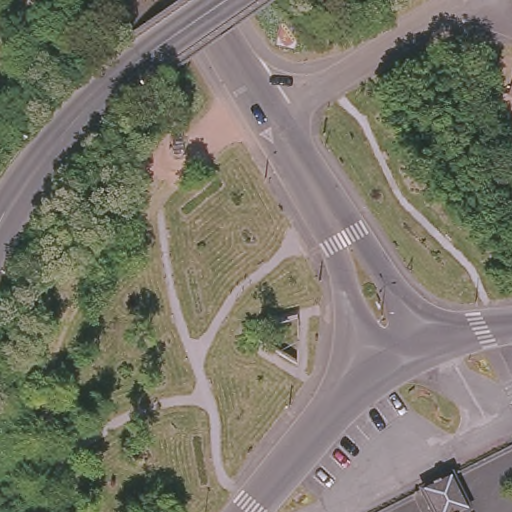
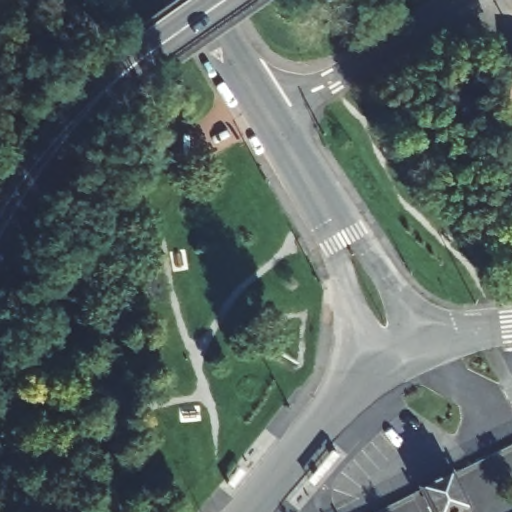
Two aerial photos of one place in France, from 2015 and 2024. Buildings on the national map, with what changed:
unchanged [(370,20),(376,29),(352,44),(349,40),(370,20)]
unchanged [(512,83),(512,97),(506,95),(512,83)]
unchanged [(417,490),(449,475),(467,512),(427,512),(417,490)]

